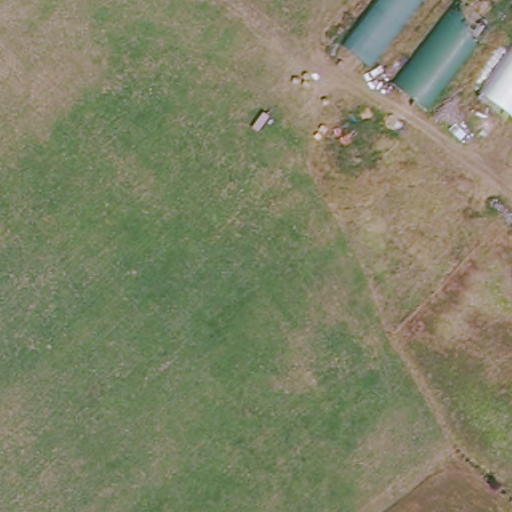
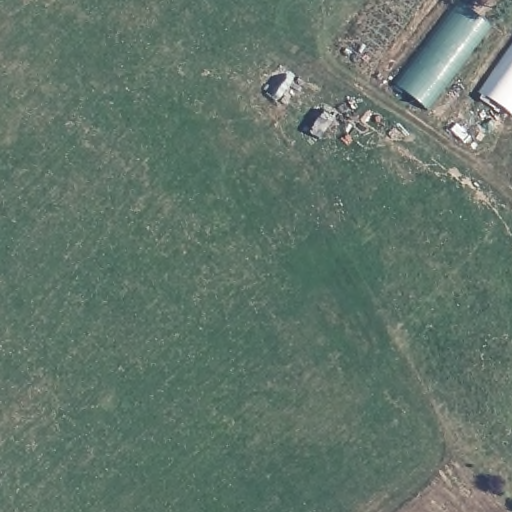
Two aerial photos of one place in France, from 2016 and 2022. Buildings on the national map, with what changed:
unchanged [(419,0),(368,65),(342,45),(376,0),(419,0)]
unchanged [(391,86),(456,0),(457,0),(490,24),(426,110),(391,86)]
unchanged [(512,46),(512,117),(478,93),(512,46)]

